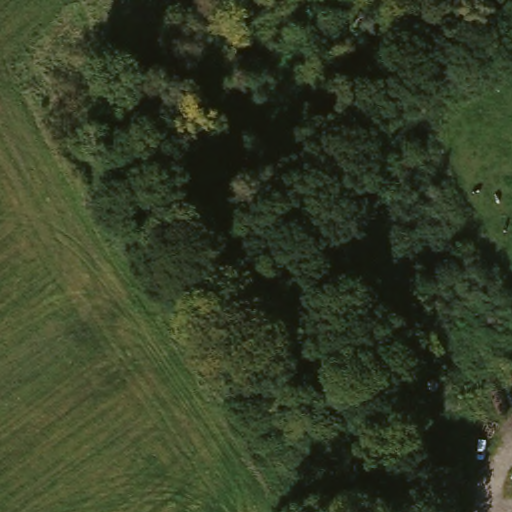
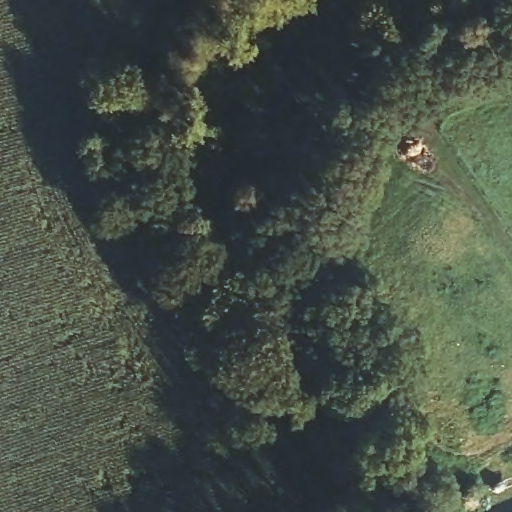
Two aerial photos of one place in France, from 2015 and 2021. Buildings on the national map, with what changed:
[]

